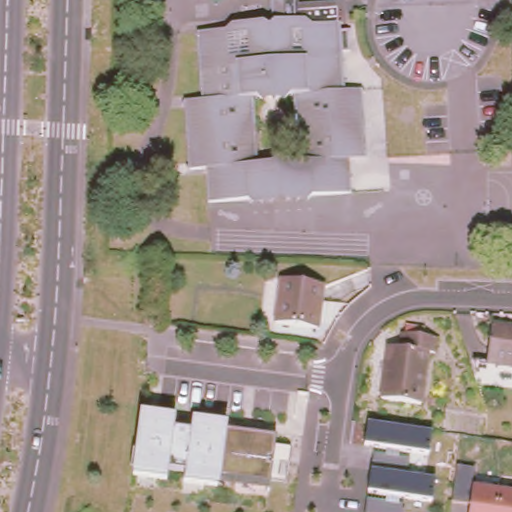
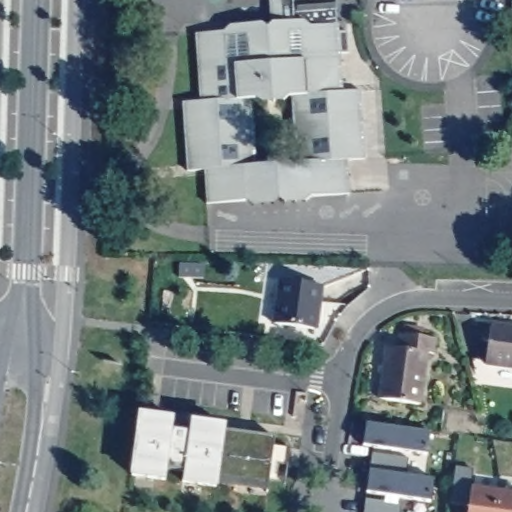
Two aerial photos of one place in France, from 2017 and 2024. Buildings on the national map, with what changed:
unchanged [(354,28),(354,50),(345,50),(345,88),(364,88),(365,158),(350,158),(352,191),(315,192),(310,198),(305,194),(299,199),(292,195),(289,198),(284,194),(277,199),(272,195),(266,200),(261,197),(207,198),(207,165),(188,166),(187,96),(202,95),(201,31),(227,29),(232,23),(237,28),(243,21),(249,27),(254,21),(260,27),(265,20),(269,26),(275,18),(275,3),(281,4),(309,3),(309,0),(342,0),(343,29),(354,28)]
unchanged [(309,3),(281,4),(275,3),(275,0),(309,0),(309,3)]
unchanged [(284,274),(327,280),(320,323),(278,317),(284,274)]
unchanged [(494,321),(512,324),(512,365),(487,362),(494,321)]
unchanged [(402,334),(405,334),(406,327),(422,329),(422,336),(436,338),(434,355),(428,355),(421,403),(381,398),(388,347),(399,348),(402,334)]
unchanged [(175,416),(172,429),(188,431),(190,420),(227,424),(226,430),(275,436),(269,491),(219,485),(218,489),(181,484),(182,473),(167,471),(165,480),(130,476),(140,412),(175,416)]
unchanged [(430,432),(427,455),(362,445),(365,423),(430,432)]
unchanged [(435,479),(431,502),(366,493),(369,471),(435,479)]
unchanged [(467,512),(470,487),(512,492),(512,512),(467,512)]

